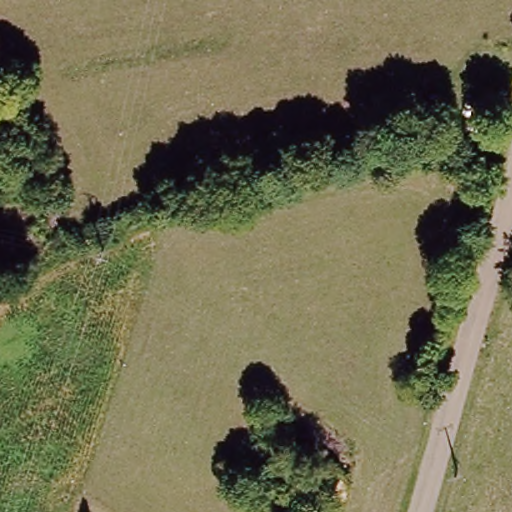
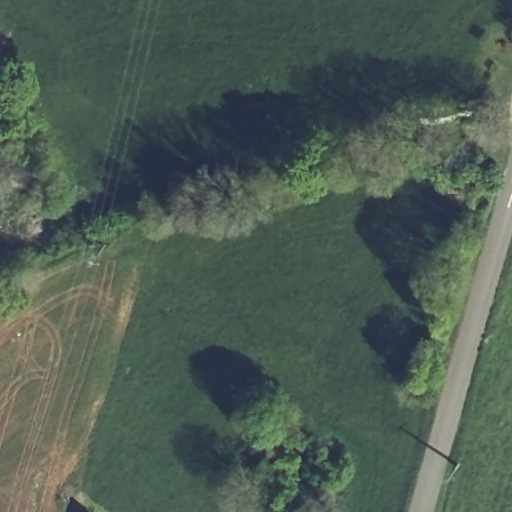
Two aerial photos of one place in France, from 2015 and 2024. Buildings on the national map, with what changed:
[]

